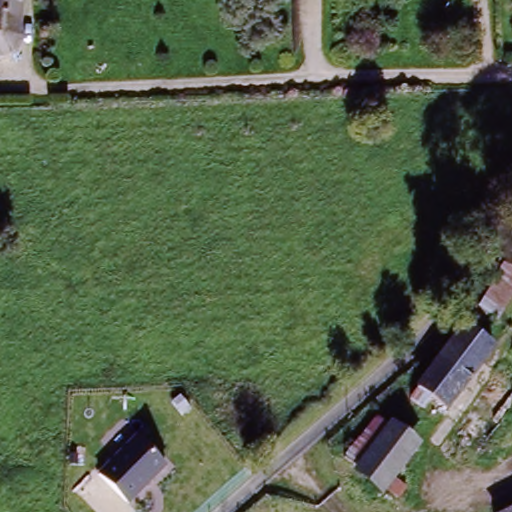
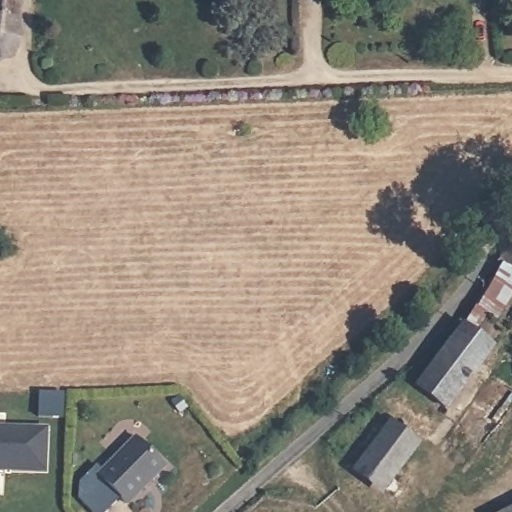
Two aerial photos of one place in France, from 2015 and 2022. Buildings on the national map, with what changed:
unchanged [(13,16),(0,17),(0,0),(13,0),(13,16)]
unchanged [(13,16),(28,36),(17,51),(11,55),(0,57),(0,17),(13,16)]
unchanged [(503,266),(512,253),(512,271),(510,270),(503,266)]
unchanged [(463,323),(503,266),(510,270),(512,271),(512,301),(496,326),(485,321),(479,335),(463,323)]
unchanged [(434,417),(409,400),(463,323),(479,335),(495,347),(444,412),(440,409),(434,417)]
unchanged [(394,481),(407,490),(398,501),(386,492),(383,496),(352,471),(355,466),(342,457),(378,414),(422,445),(394,481)]
new [(3,430),(4,427),(46,428),(44,470),(0,467),(0,430),(3,430)]
unchanged [(137,434),(169,463),(128,504),(97,475),(137,434)]
unchanged [(493,512),(512,499),(512,512),(493,512)]

